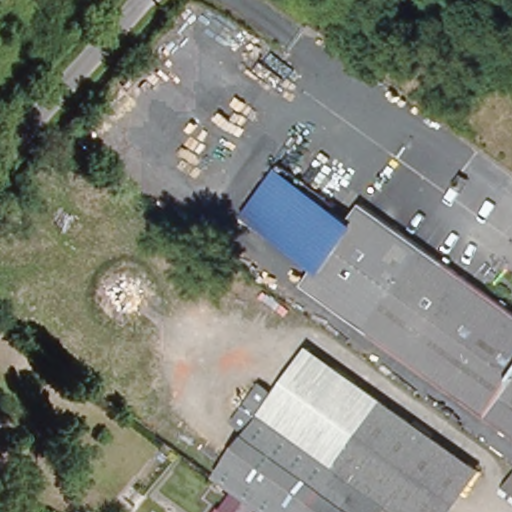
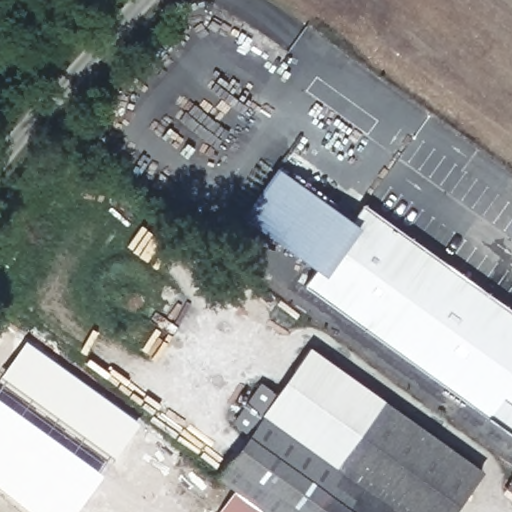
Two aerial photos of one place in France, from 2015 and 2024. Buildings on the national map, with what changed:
unchanged [(321,261),(249,210),(276,169),(351,218),(363,200),(512,302),(512,424),(309,280),(321,261)]
new [(23,512),(0,494),(0,377),(23,344),(137,427),(77,512),(23,512)]
unchanged [(279,389),(309,346),(481,466),(450,512),(397,512),(260,417),(279,389)]
unchanged [(279,389),(260,417),(397,512),(385,512),(259,426),(248,440),(227,424),(262,376),(279,389)]
unchanged [(248,440),(259,426),(385,512),(258,512),(215,482),(248,440)]
unchanged [(512,475),(512,510),(495,498),(512,475)]
unchanged [(212,480),(215,482),(258,512),(212,512),(197,501),(212,480)]

